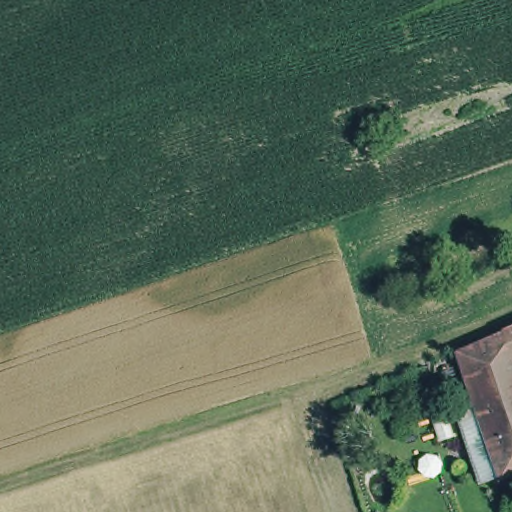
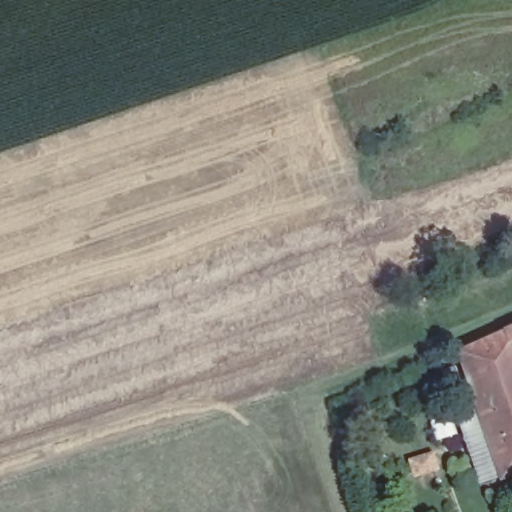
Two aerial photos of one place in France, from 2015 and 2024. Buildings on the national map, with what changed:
unchanged [(466,351),(465,349),(496,336),(510,331),(512,330),(512,476),(509,477),(466,351)]

